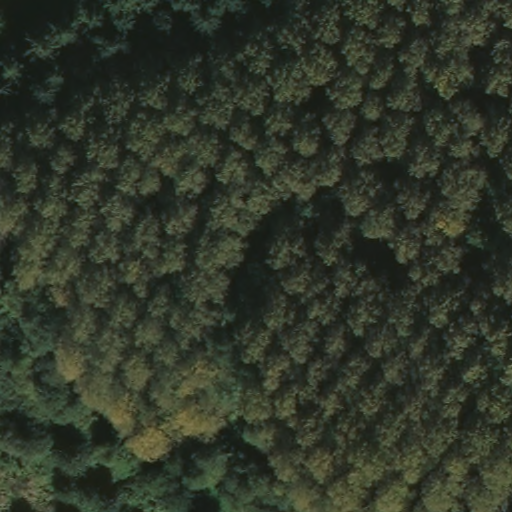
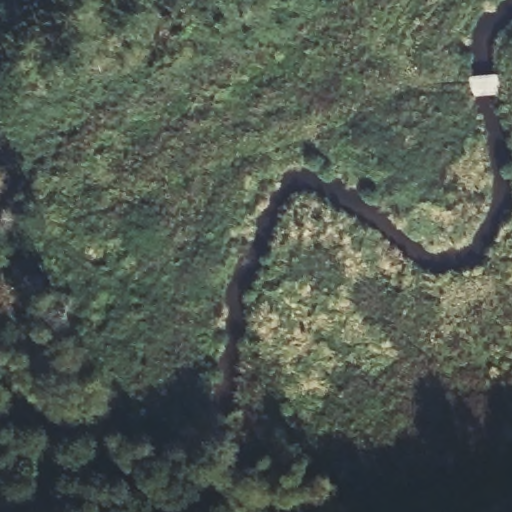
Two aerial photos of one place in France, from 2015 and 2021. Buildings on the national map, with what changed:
[]

